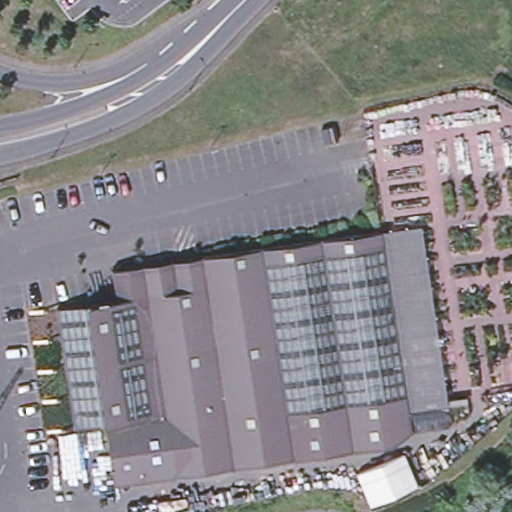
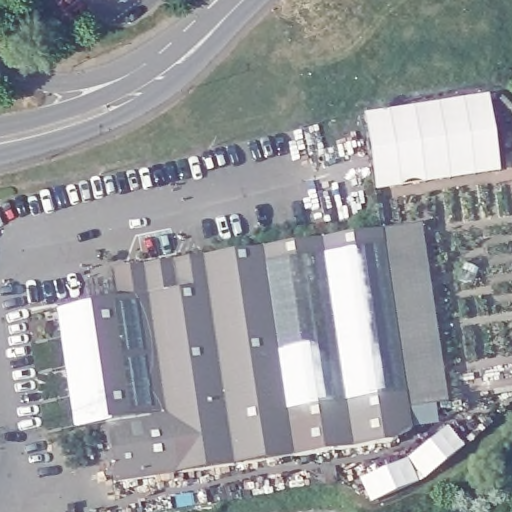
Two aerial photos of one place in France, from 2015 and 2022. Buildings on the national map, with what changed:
new [(364,114),(487,97),(498,172),(374,189),(364,114)]
unchanged [(420,226),(448,404),(408,410),(380,232),(420,226)]
unchanged [(408,410),(411,432),(392,445),(113,487),(104,426),(74,431),(56,311),(116,302),(111,272),(380,232),(408,410)]

